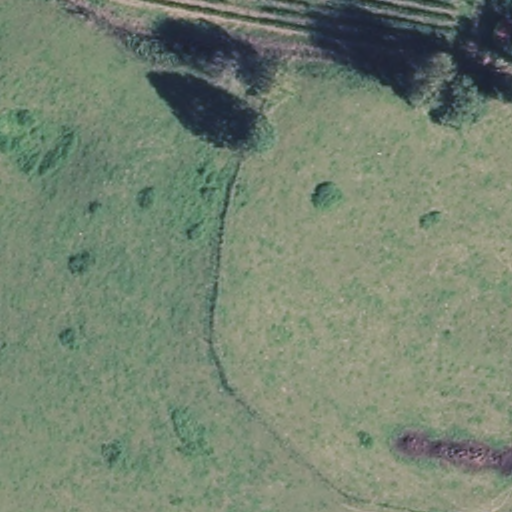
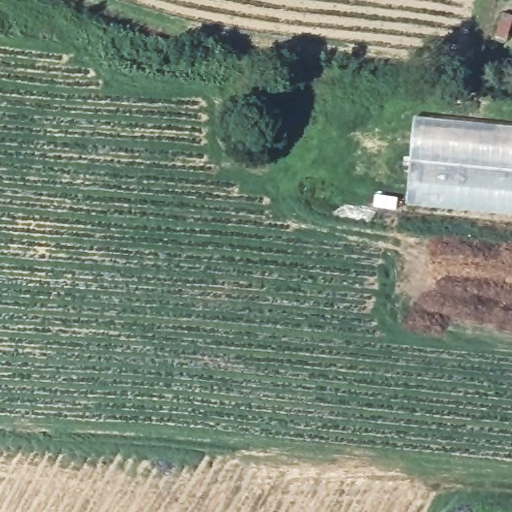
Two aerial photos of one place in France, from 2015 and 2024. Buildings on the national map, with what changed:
new [(512,124),(512,215),(406,204),(414,115),(512,124)]

